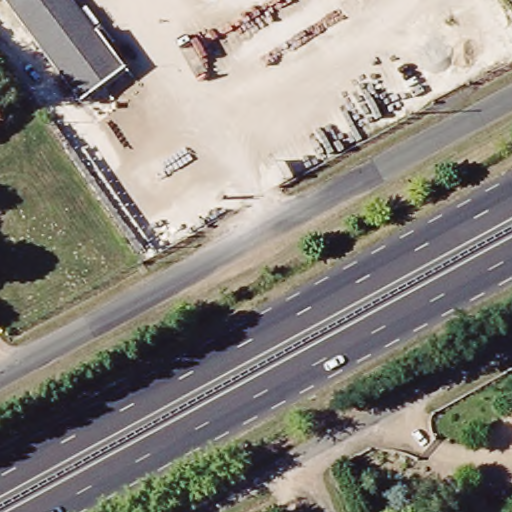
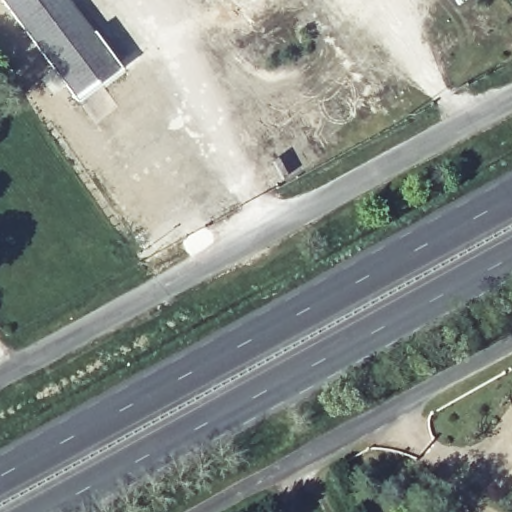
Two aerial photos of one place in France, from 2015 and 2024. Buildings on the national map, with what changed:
unchanged [(119,61),(75,94),(5,0),(74,0),(119,61)]

